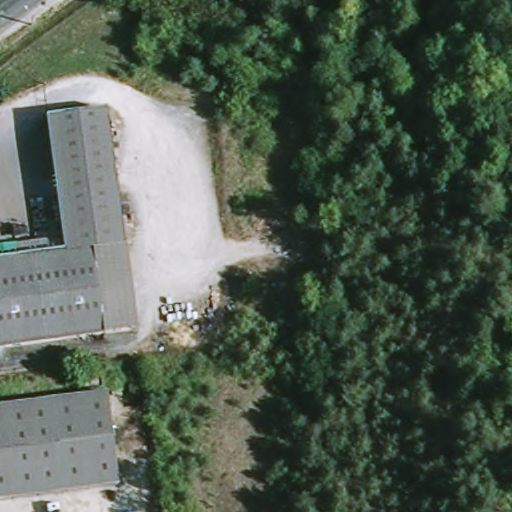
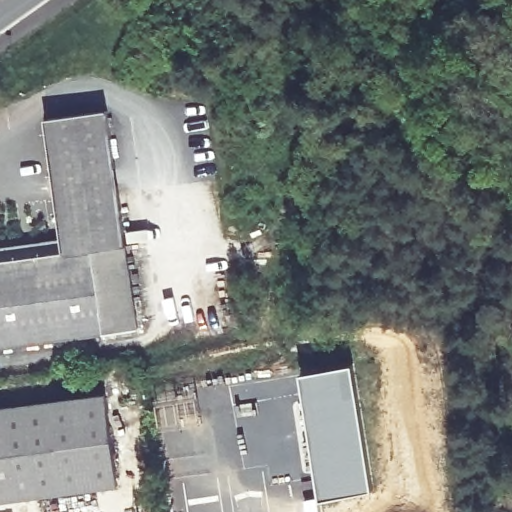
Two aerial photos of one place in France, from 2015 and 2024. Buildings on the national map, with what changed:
unchanged [(125,247),(96,251),(106,339),(0,354),(0,264),(64,255),(42,123),(105,113),(125,247)]
unchanged [(128,266),(139,334),(106,339),(96,251),(125,247),(128,266)]
new [(300,374),(350,367),(367,493),(319,499),(300,374)]
unchanged [(104,394),(115,488),(0,505),(0,409),(104,394)]

